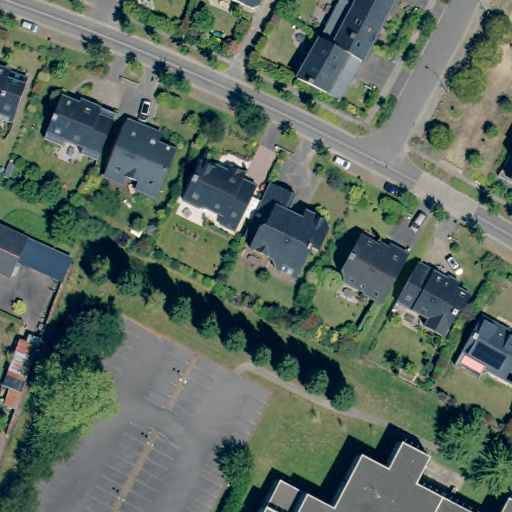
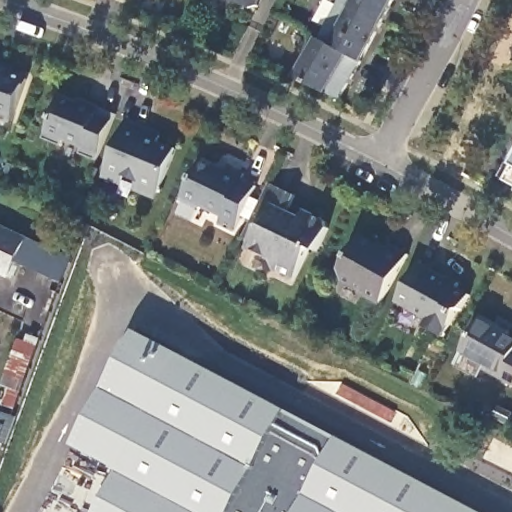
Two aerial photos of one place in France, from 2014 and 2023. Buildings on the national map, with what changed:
unchanged [(257,6),(250,9),(228,0),(259,0),(257,6)]
unchanged [(319,34),(335,0),(346,0),(381,18),(360,57),(319,34)]
unchanged [(381,18),(346,0),(388,0),(381,18)]
unchanged [(308,50),(303,47),(312,30),(319,34),(360,57),(338,95),(292,73),(308,50)]
unchanged [(13,122),(0,119),(0,69),(26,78),(13,122)]
unchanged [(93,154),(76,148),(78,142),(60,136),(58,140),(40,133),(56,92),(74,97),(75,94),(111,108),(93,154)]
unchanged [(157,139),(156,142),(174,150),(155,195),(146,198),(138,195),(134,187),(104,172),(124,124),(157,139)]
unchanged [(220,174),(226,165),(242,172),(239,180),(252,187),(230,230),(214,224),(218,214),(202,207),(194,208),(178,201),(195,162),(220,174)]
unchanged [(505,179),(512,166),(512,183),(505,179)]
unchanged [(292,192),(287,205),(299,211),(302,204),(322,213),(327,224),(315,248),(307,245),(292,278),(272,268),(267,261),(243,249),(247,242),(239,236),(265,180),(292,192)]
unchanged [(0,273),(0,226),(18,234),(8,258),(1,273),(0,273)]
unchanged [(18,234),(61,254),(53,278),(8,258),(18,234)]
unchanged [(375,308),(357,299),(358,296),(338,285),(332,275),(352,238),(383,252),(385,247),(404,257),(375,308)]
unchanged [(447,279),(460,287),(459,290),(457,295),(469,302),(461,316),(454,317),(442,340),(423,329),(427,321),(397,303),(419,266),(446,282),(447,279)]
unchanged [(511,328),(509,334),(512,336),(512,384),(482,368),(484,364),(462,352),(479,322),(482,317),(496,325),(500,322),(511,328)]
new [(463,512),(41,512),(129,336),(463,512)]
unchanged [(38,349),(26,383),(8,377),(20,341),(38,349)]
new [(0,443),(0,427),(5,429),(0,443)]
demolished [(357,452),(383,465),(397,440),(425,453),(412,481),(471,512),(257,512),(275,478),(329,506),(357,452)]
demolished [(199,512),(193,509),(208,478),(231,490),(219,512),(199,512)]
demolished [(512,500),(512,512),(493,512),(503,495),(512,500)]

